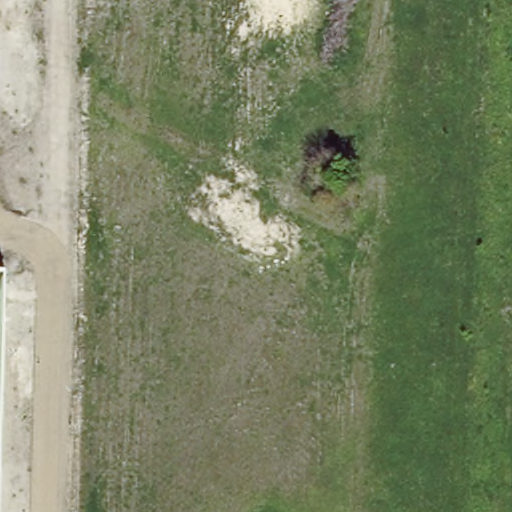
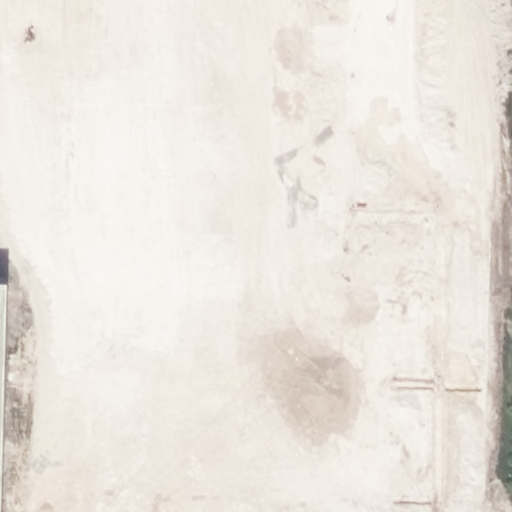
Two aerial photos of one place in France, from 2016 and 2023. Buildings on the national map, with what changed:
unchanged [(0,481),(0,280),(5,280),(0,481)]

